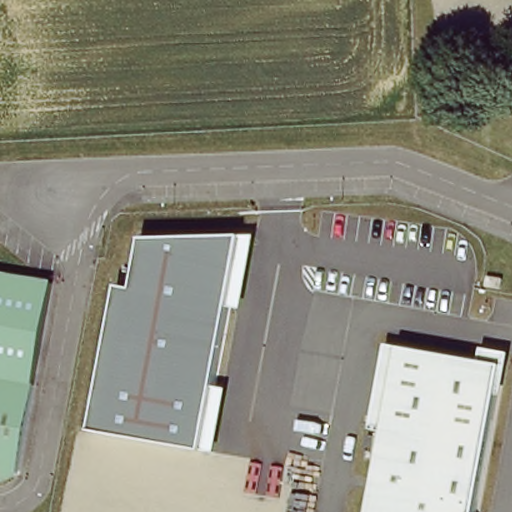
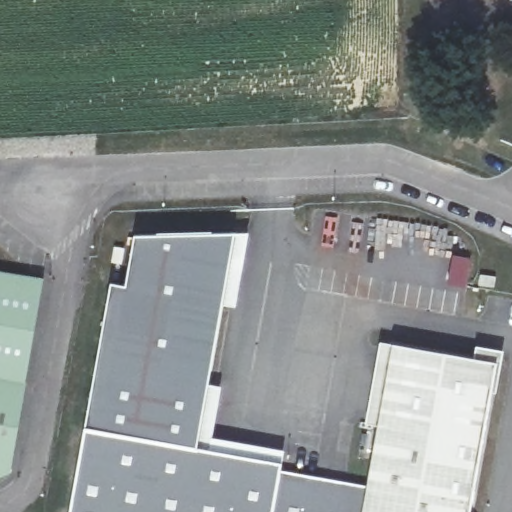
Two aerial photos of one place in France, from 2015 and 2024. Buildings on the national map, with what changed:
unchanged [(237,234),(199,448),(87,429),(112,283),(127,285),(137,236),(237,234)]
unchanged [(30,380),(15,470),(0,481),(0,272),(47,280),(30,380)]
unchanged [(497,366),(473,512),(366,512),(393,349),(497,366)]
new [(73,512),(87,429),(199,448),(284,465),(370,485),(366,512),(73,512)]

